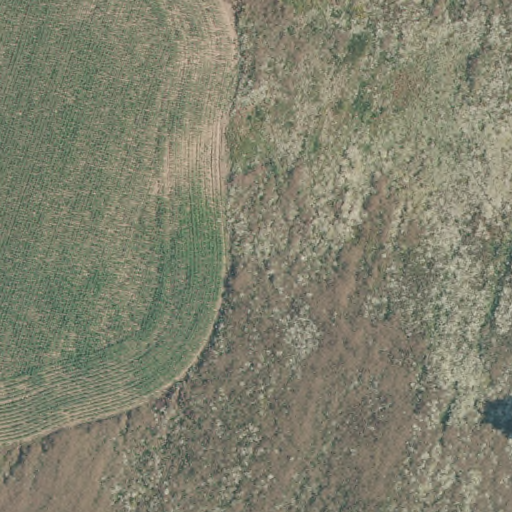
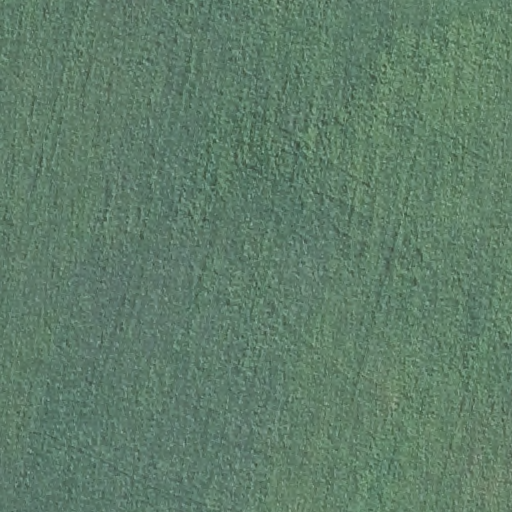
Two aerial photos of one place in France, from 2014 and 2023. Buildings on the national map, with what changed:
[]

